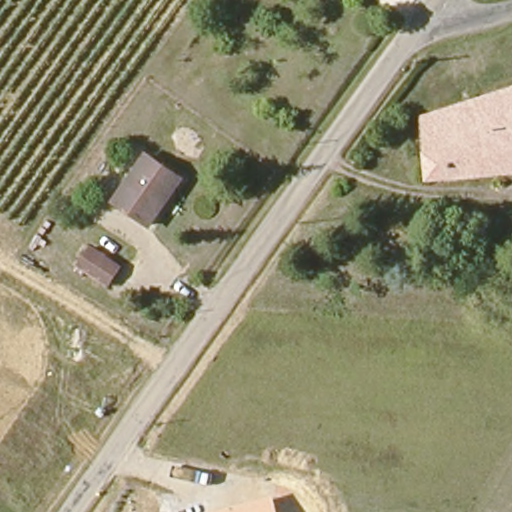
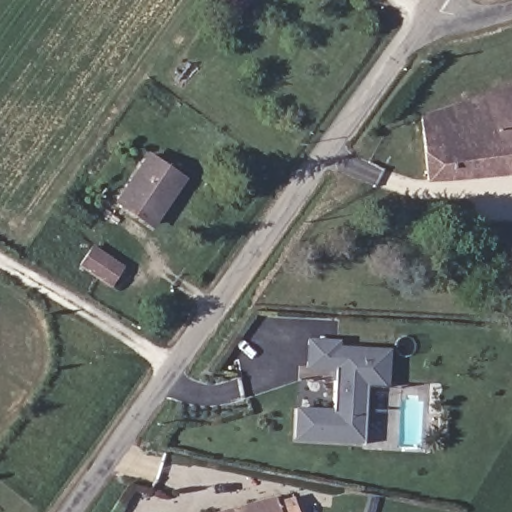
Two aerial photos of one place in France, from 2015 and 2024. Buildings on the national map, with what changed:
unchanged [(427,169),(425,109),(512,92),(512,180),(427,169)]
unchanged [(152,225),(120,200),(151,155),(184,178),(152,225)]
unchanged [(112,286),(82,263),(95,244),(125,266),(112,286)]
new [(363,442),(294,439),(295,406),(335,408),(337,370),(306,368),(307,337),(340,339),(339,345),(391,348),(389,386),(367,385),(363,442)]
unchanged [(279,512),(216,512),(275,496),(279,512)]

